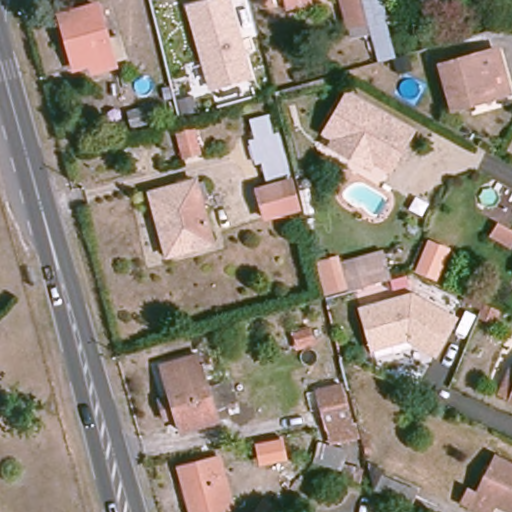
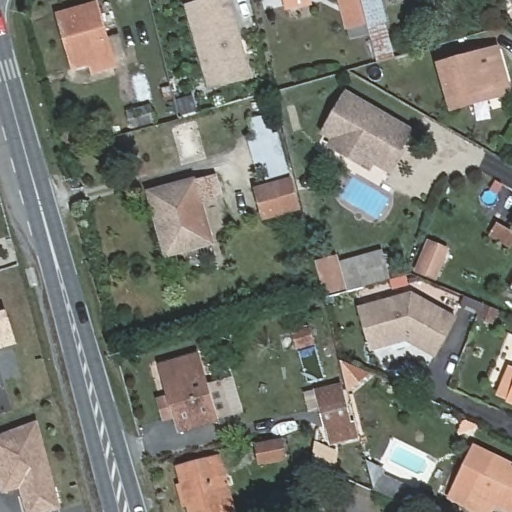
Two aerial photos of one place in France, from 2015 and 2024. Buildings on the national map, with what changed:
unchanged [(208,90),(184,6),(205,0),(232,0),(253,78),(208,90)]
unchanged [(290,6),(289,0),(311,0),(311,2),(290,6)]
unchanged [(376,0),(380,0),(396,57),(381,61),(371,38),(353,44),(341,0),(362,0),(363,5),(376,0)]
unchanged [(103,43),(117,40),(123,61),(110,65),(111,70),(91,76),(88,67),(70,73),(55,20),(94,8),(95,14),(103,43)]
unchanged [(512,90),(512,92),(453,108),(440,64),(499,48),(512,90)]
unchanged [(390,173),(374,163),(369,172),(326,145),(329,140),(319,135),(345,92),(353,92),(416,132),(390,173)]
unchanged [(264,179),(258,160),(251,162),(245,140),(252,137),(247,118),(263,114),(269,134),(274,132),(285,173),(264,179)]
unchanged [(214,241),(168,253),(157,212),(151,190),(197,179),(203,197),(214,241)]
unchanged [(293,183),(300,211),(265,220),(257,189),(292,180),(293,183)]
unchanged [(455,250),(440,286),(412,276),(425,239),(455,250)]
unchanged [(399,292),(383,296),(380,282),(349,290),(330,296),(320,259),(340,254),(342,262),(383,251),(391,278),(395,277),(399,292)]
unchanged [(372,347),(361,308),(411,294),(457,313),(441,351),(423,343),(409,337),(372,347)]
new [(6,310),(16,344),(0,349),(0,311),(6,310)]
unchanged [(168,400),(159,368),(194,358),(203,392),(226,387),(231,407),(222,409),(225,421),(179,433),(174,420),(160,423),(155,403),(168,400)]
unchanged [(512,375),(512,404),(501,400),(512,375)]
unchanged [(342,388),(356,441),(334,446),(320,394),(342,388)]
new [(1,494),(0,489),(0,434),(37,421),(60,509),(49,512),(25,512),(19,489),(1,494)]
new [(447,497),(474,445),(498,456),(472,508),(447,497)]
unchanged [(221,456),(235,508),(220,512),(193,512),(181,466),(221,456)]
unchanged [(512,463),(512,509),(497,503),(493,512),(481,512),(472,508),(498,456),(512,463)]
unchanged [(384,477),(417,491),(411,507),(377,491),(384,477)]

